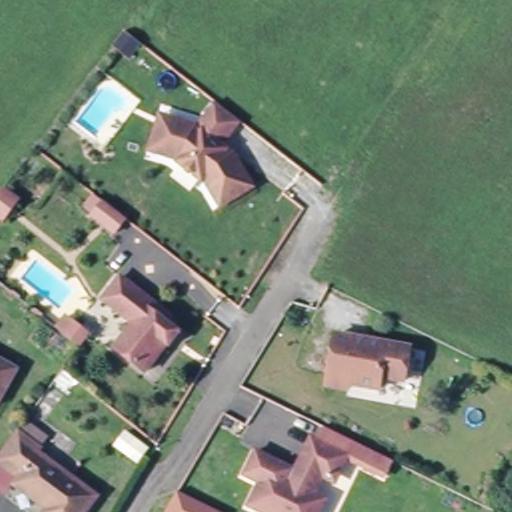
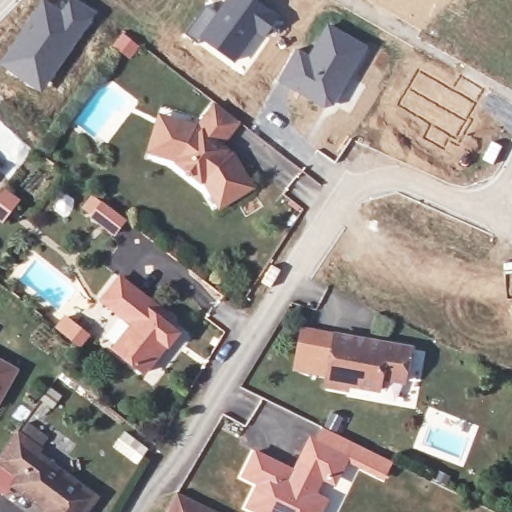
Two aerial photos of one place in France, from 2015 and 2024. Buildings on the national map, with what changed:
new [(50,0),(50,1),(51,0),(77,0),(99,13),(41,93),(0,63),(0,59),(41,0),(50,0)]
new [(216,13),(226,0),(258,0),(281,16),(249,58),(243,53),(235,63),(186,33),(207,6),(216,13)]
new [(296,48),(307,54),(327,21),(370,46),(341,96),(329,109),(328,111),(277,81),(296,48)]
unchanged [(140,60),(122,46),(134,32),(151,46),(140,60)]
new [(455,89),(463,75),(486,89),(470,116),(475,119),(461,146),(450,140),(446,148),(426,136),(434,124),(401,105),(420,69),(455,89)]
unchanged [(235,151),(255,185),(222,206),(207,183),(202,184),(175,165),(175,161),(158,154),(149,151),(162,110),(177,116),(199,124),(218,100),(241,119),(225,143),(235,151)]
unchanged [(10,220),(0,212),(0,199),(9,188),(25,200),(10,220)]
unchanged [(120,212),(110,226),(87,208),(97,194),(120,212)]
unchanged [(145,374),(116,353),(132,326),(105,305),(120,283),(166,318),(162,326),(170,332),(162,345),(165,347),(145,374)]
unchanged [(86,331),(77,342),(64,331),(72,320),(86,331)]
new [(333,332),(333,335),(326,377),(292,371),(300,326),(333,332)]
unchanged [(407,347),(402,380),(380,376),(377,389),(347,384),(346,389),(325,386),(333,335),(407,347)]
unchanged [(0,394),(0,355),(16,364),(0,394)]
unchanged [(300,467),(312,439),(320,437),(327,422),(356,436),(357,436),(350,450),(355,442),(395,462),(387,479),(350,461),(345,472),(333,476),(328,474),(321,490),(333,496),(326,512),(271,512),(254,504),(265,481),(249,474),(260,449),(300,467)]
unchanged [(148,447),(138,460),(116,444),(126,430),(148,447)]
unchanged [(42,453),(40,456),(100,497),(88,512),(45,512),(14,490),(19,482),(0,468),(0,458),(17,435),(42,453)]
unchanged [(216,512),(168,512),(178,494),(216,512)]

